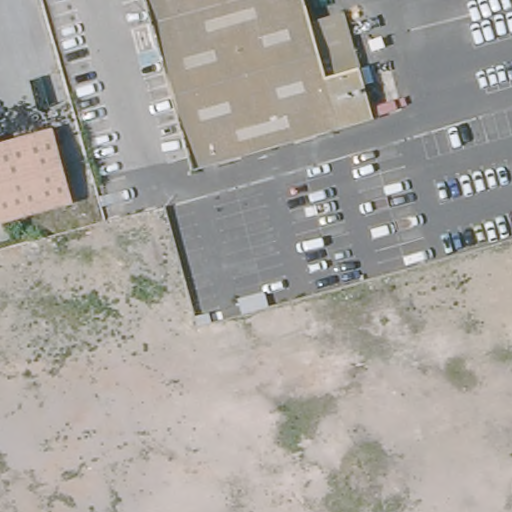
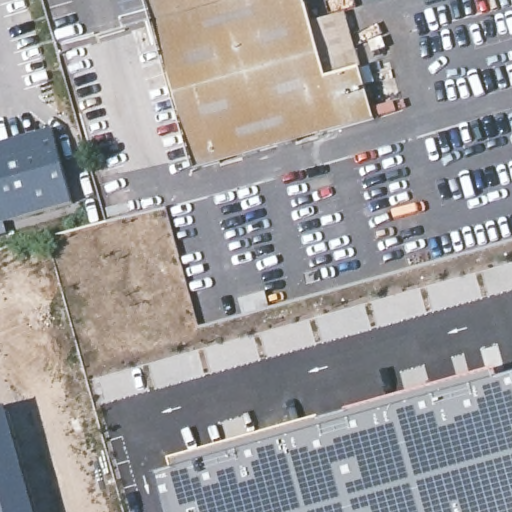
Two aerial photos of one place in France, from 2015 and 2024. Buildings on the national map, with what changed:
unchanged [(314,17),(346,9),(377,117),(202,165),(154,0),(310,0),(314,17)]
unchanged [(74,203),(0,222),(0,146),(53,132),(74,203)]
new [(169,462),(307,423),(340,415),(426,389),(497,370),(500,378),(512,375),(512,512),(167,512),(157,477),(172,471),(169,462)]
new [(37,512),(0,512),(0,410),(8,407),(37,512)]

